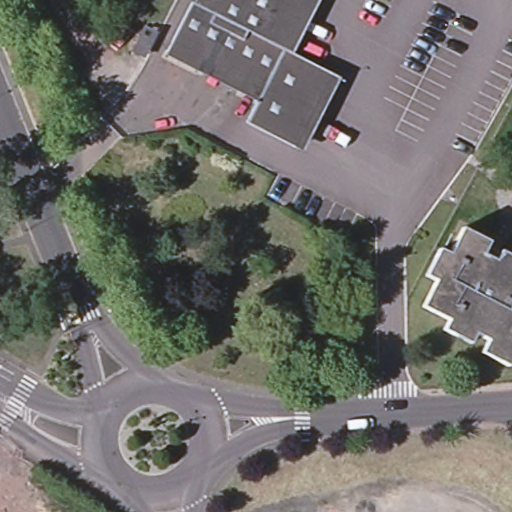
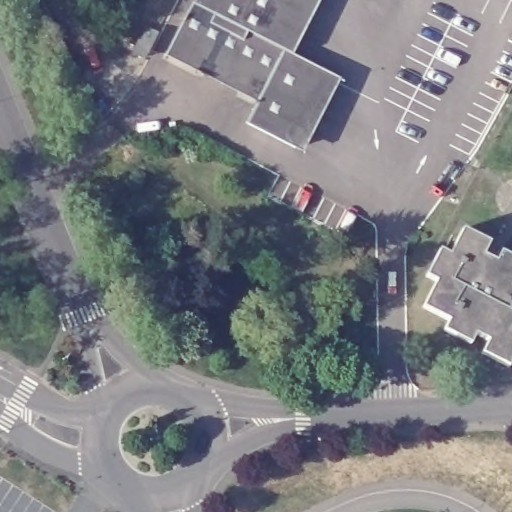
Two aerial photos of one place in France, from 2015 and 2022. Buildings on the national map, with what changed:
unchanged [(335,74),(299,147),(251,123),(262,98),(172,52),(196,4),(199,5),(201,0),(312,0),(287,49),(335,74)]
unchanged [(507,364),(481,350),(487,338),(474,331),(469,340),(444,328),(449,318),(423,305),(436,279),(427,274),(440,247),(450,251),(462,226),(490,240),(483,252),(512,267),(512,355),(507,364)]

